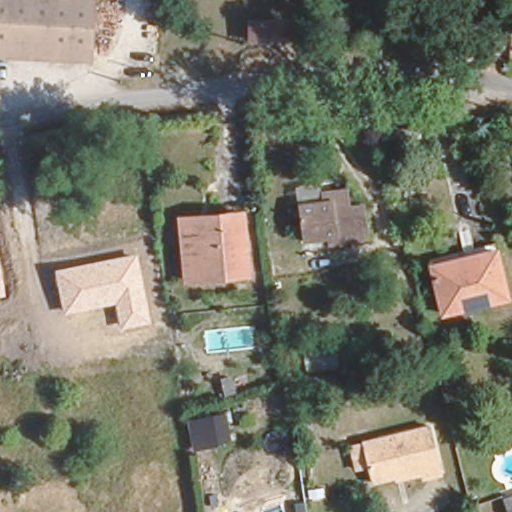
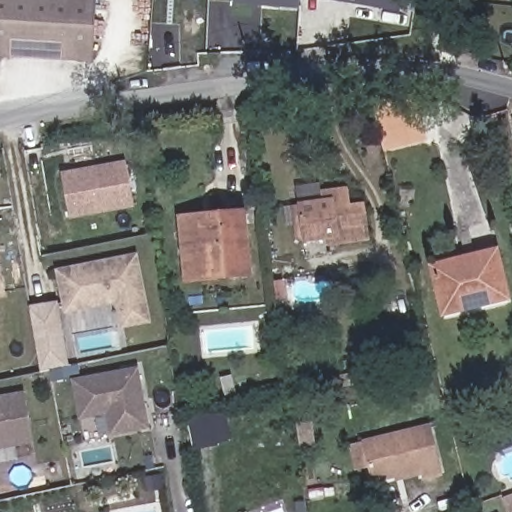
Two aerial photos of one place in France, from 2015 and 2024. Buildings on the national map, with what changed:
unchanged [(91,59),(67,58),(68,50),(0,45),(0,0),(95,0),(91,59)]
new [(235,4),(235,0),(300,0),(300,9),(235,4)]
new [(398,12),(329,0),(400,0),(398,12)]
demolished [(249,37),(247,20),(286,16),(288,33),(249,37)]
unchanged [(377,157),(373,139),(411,134),(415,151),(377,157)]
new [(60,173),(125,160),(135,207),(69,219),(60,173)]
unchanged [(331,242),(330,235),(296,239),(290,207),(328,202),(327,189),(345,187),(350,209),(362,207),(367,237),(331,242)]
unchanged [(177,216),(197,213),(239,207),(241,222),(246,268),(184,276),(177,216)]
unchanged [(440,310),(427,265),(498,244),(512,287),(512,289),(440,310)]
unchanged [(150,323),(121,329),(116,304),(64,314),(55,271),(137,255),(150,323)]
unchanged [(0,297),(0,266),(5,296),(0,297)]
new [(40,371),(30,308),(55,305),(65,366),(49,369),(40,371)]
new [(79,421),(71,380),(139,368),(151,430),(109,437),(105,415),(79,421)]
new [(0,450),(0,396),(25,392),(34,444),(0,450)]
unchanged [(194,452),(186,416),(225,405),(232,442),(194,452)]
unchanged [(421,472),(418,463),(367,477),(355,440),(425,419),(441,467),(421,472)]
unchanged [(307,498),(302,467),(312,466),(317,497),(307,498)]
unchanged [(512,491),(512,512),(506,512),(501,494),(512,491)]

